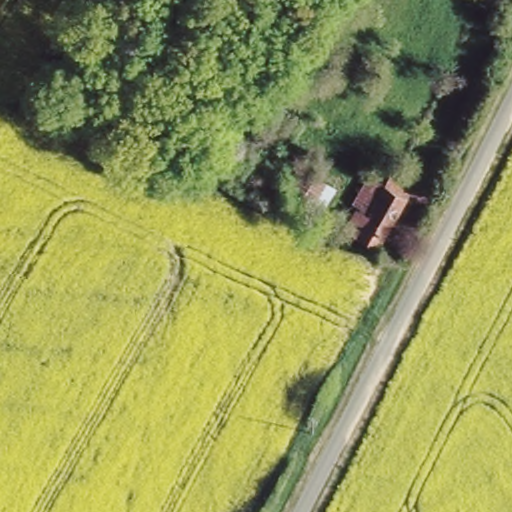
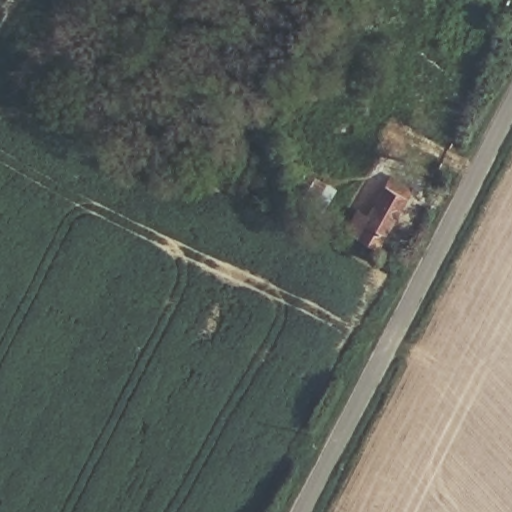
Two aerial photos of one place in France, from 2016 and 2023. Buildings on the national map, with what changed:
unchanged [(397,191),(364,252),(342,240),(375,179),(397,191)]

